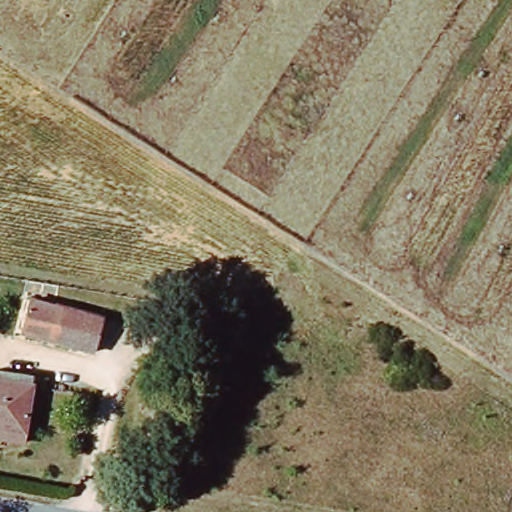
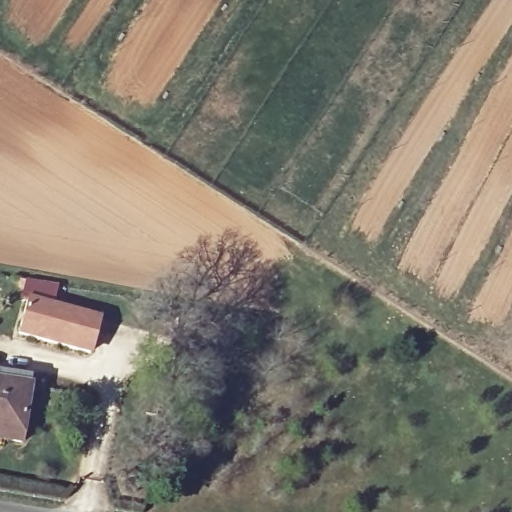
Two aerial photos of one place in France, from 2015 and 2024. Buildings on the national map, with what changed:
unchanged [(33,305),(95,321),(87,355),(25,339),(33,305)]
unchanged [(0,444),(0,368),(29,372),(28,388),(21,446),(0,444)]

